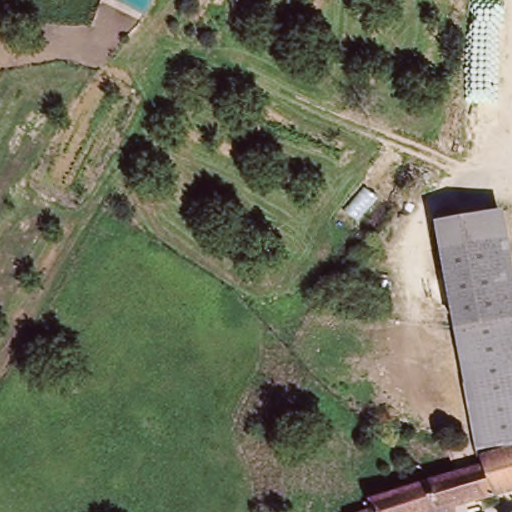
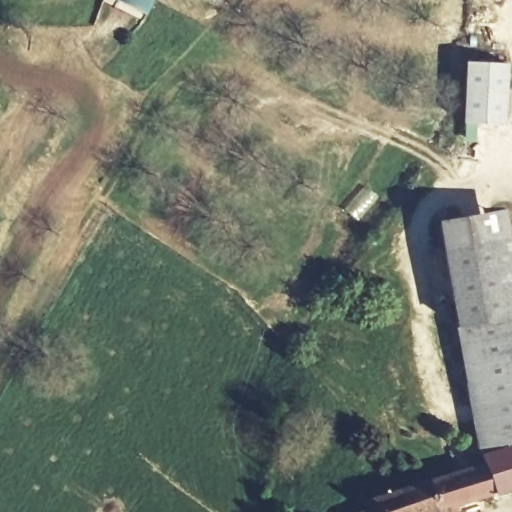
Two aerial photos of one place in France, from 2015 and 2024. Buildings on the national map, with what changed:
unchanged [(148,20),(106,1),(106,0),(157,0),(148,20)]
new [(464,60),(510,62),(508,125),(477,125),(476,142),(462,141),(464,60)]
unchanged [(493,217),(512,311),(512,314),(453,325),(435,225),(493,217)]
unchanged [(512,440),(480,446),(453,325),(512,314),(512,440)]
unchanged [(480,446),(512,440),(512,485),(458,502),(458,512),(436,512),(430,476),(483,460),(480,446)]
unchanged [(368,492),(430,476),(436,512),(349,512),(351,510),(368,492)]

